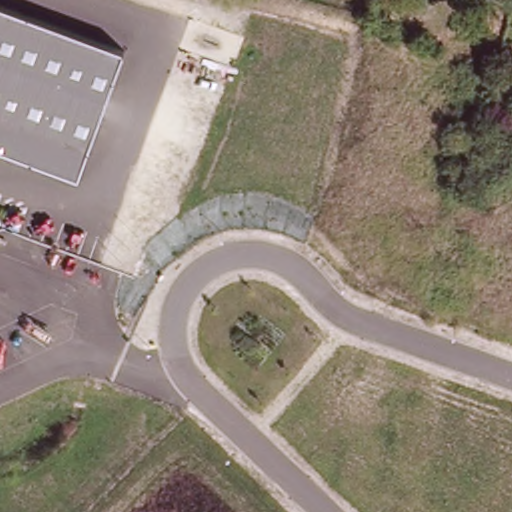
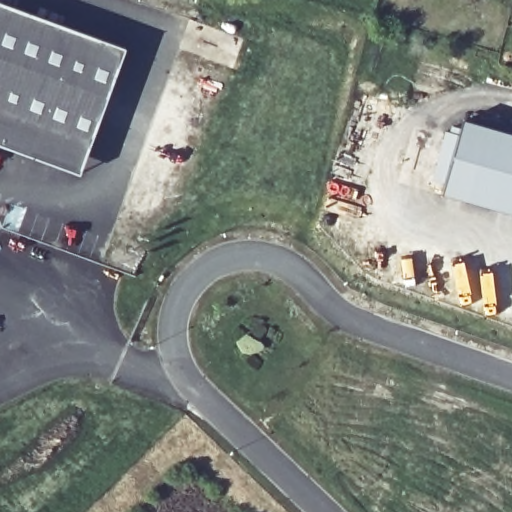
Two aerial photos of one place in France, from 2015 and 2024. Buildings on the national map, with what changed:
unchanged [(81,175),(0,145),(0,4),(126,50),(81,175)]
new [(446,135),(458,138),(462,124),(512,138),(492,211),(441,196),(445,182),(433,179),(446,135)]
new [(512,138),(512,217),(492,211),(512,138)]

